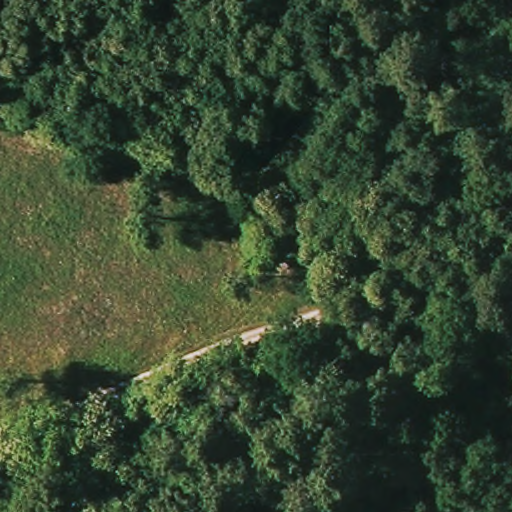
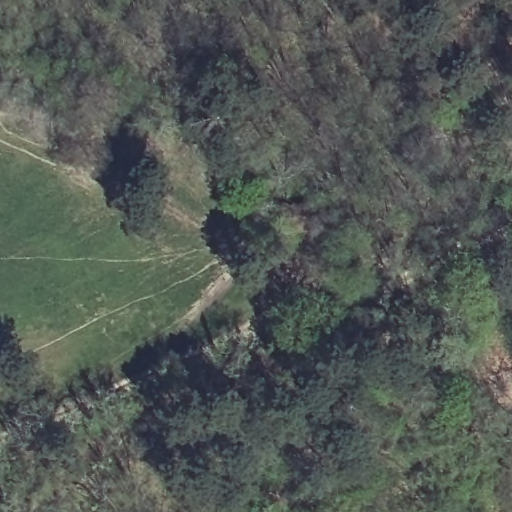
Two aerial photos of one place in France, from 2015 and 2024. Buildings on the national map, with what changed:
unchanged [(325,223),(281,224),(280,197),(324,195),(325,223)]

